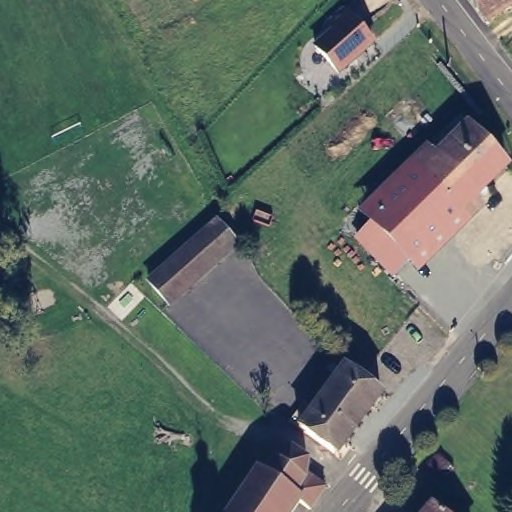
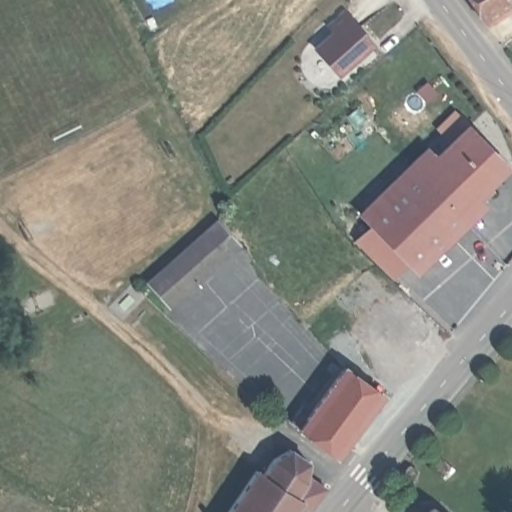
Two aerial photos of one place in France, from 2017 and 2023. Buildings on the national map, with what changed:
unchanged [(468,0),(512,0),(512,7),(487,27),(468,0)]
unchanged [(380,43),(341,78),(314,49),(352,14),(380,43)]
unchanged [(512,170),(483,201),(490,207),(420,275),(408,266),(395,278),(353,239),(370,223),(360,214),(428,144),(437,152),(469,122),(512,165),(512,170)]
unchanged [(236,250),(170,309),(149,286),(215,227),(236,250)]
unchanged [(345,362),(380,389),(337,452),(300,424),(299,424),(345,362)]
unchanged [(262,478),(274,462),(290,453),(307,466),(305,478),(324,492),(311,512),(308,512),(299,506),(294,512),(230,512),(257,474),(262,478)]

